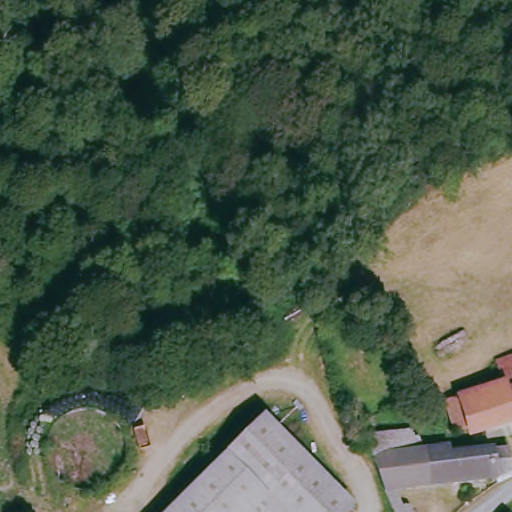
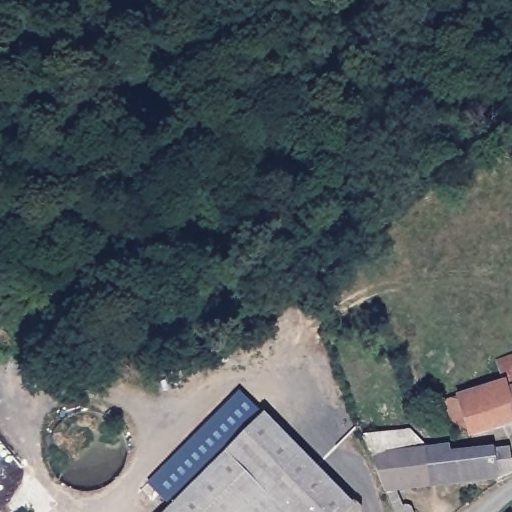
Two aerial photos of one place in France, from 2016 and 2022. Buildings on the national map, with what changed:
unchanged [(462,401),(505,387),(502,373),(512,370),(512,424),(472,437),(470,430),(451,435),(443,407),(462,401)]
unchanged [(349,507),(344,512),(278,512),(222,455),(260,418),(349,507)]
unchanged [(452,456),(512,449),(512,476),(504,476),(390,493),(375,456),(450,446),(452,456)]
unchanged [(164,512),(222,455),(278,512),(164,512)]

